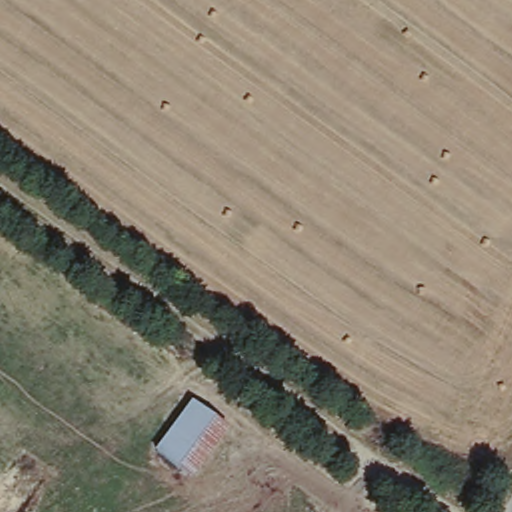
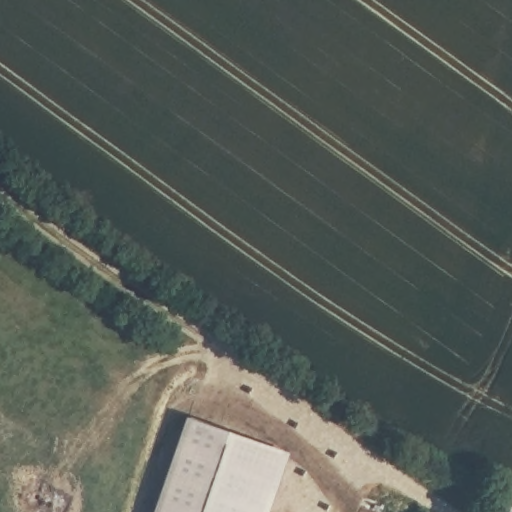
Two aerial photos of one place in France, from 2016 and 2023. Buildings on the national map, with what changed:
new [(289,455),(270,512),(156,512),(187,422),(289,455)]

